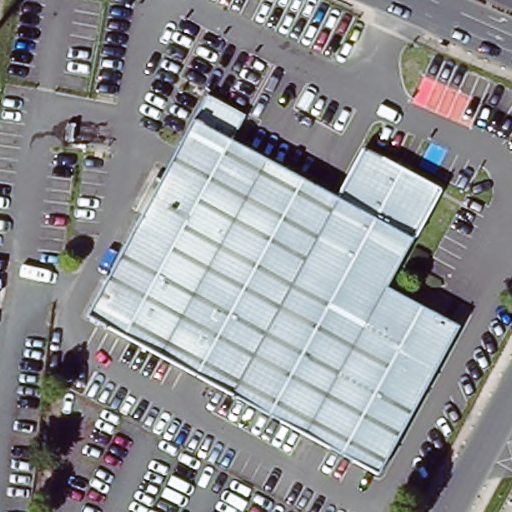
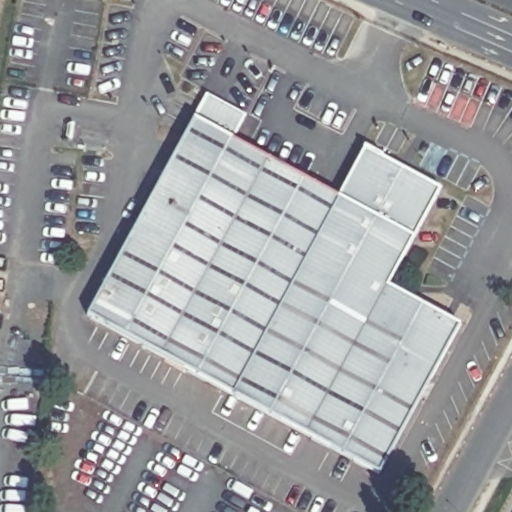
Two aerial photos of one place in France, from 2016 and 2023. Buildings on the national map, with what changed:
unchanged [(362,152),(360,150),(361,148),(380,158),(380,161),(436,191),(384,289),(456,328),(394,443),(375,476),(297,435),(86,320),(205,99),(243,120),(230,143),(337,199),(362,152)]

